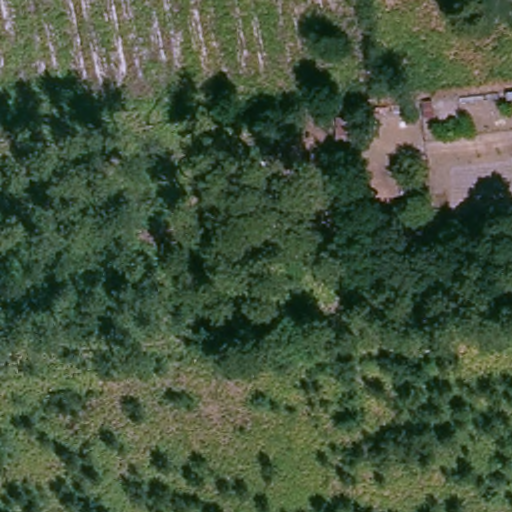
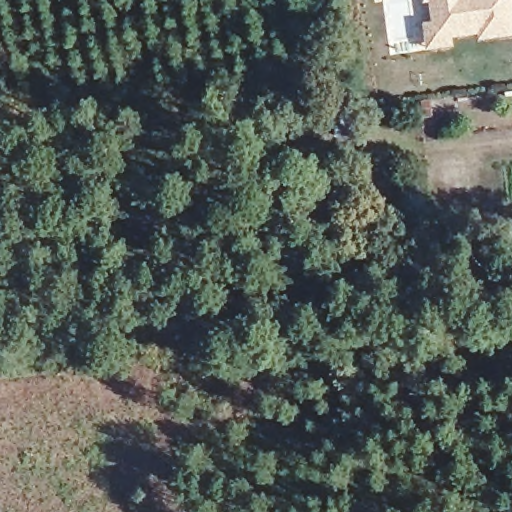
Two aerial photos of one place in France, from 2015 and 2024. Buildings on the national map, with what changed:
new [(512,38),(480,42),(479,36),(454,39),(455,49),(428,53),(424,25),(433,23),(430,4),(424,5),(424,0),(512,0),(512,38)]

